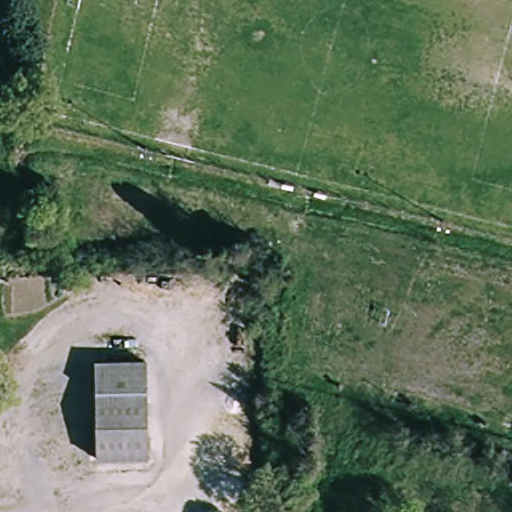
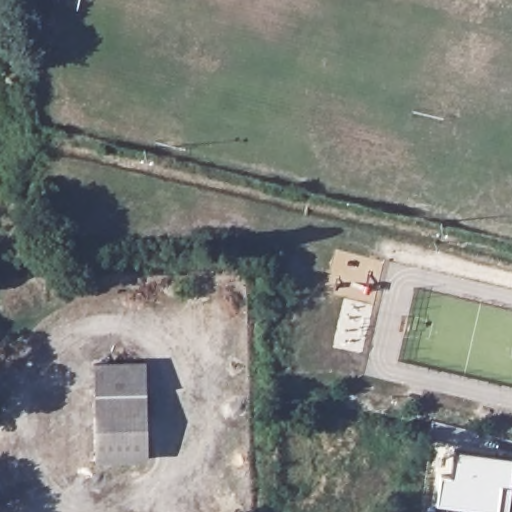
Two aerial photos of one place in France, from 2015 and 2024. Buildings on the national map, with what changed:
unchanged [(95,364),(150,365),(151,396),(97,397),(95,364)]
unchanged [(95,462),(95,452),(97,397),(151,396),(151,451),(151,462),(95,462)]
new [(500,512),(436,503),(440,473),(450,475),(454,450),(512,457),(512,476),(507,512),(500,512)]

